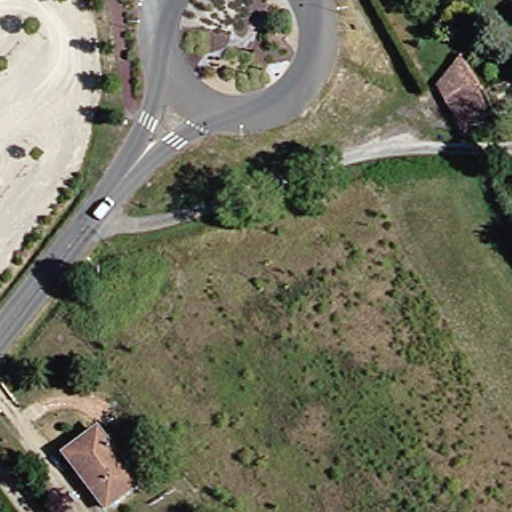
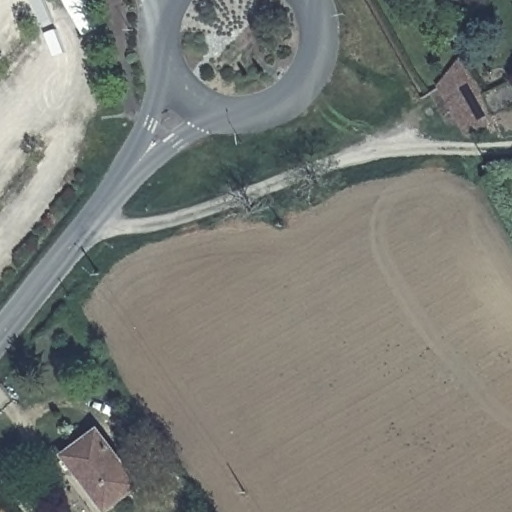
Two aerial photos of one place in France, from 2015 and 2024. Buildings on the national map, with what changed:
unchanged [(465,54),(491,92),(499,112),(490,116),(494,126),(469,129),(442,82),(465,54)]
unchanged [(110,510),(87,479),(70,456),(74,452),(101,432),(142,486),(110,510)]

